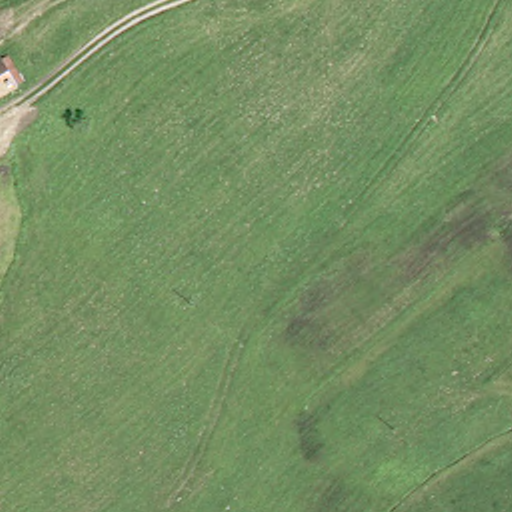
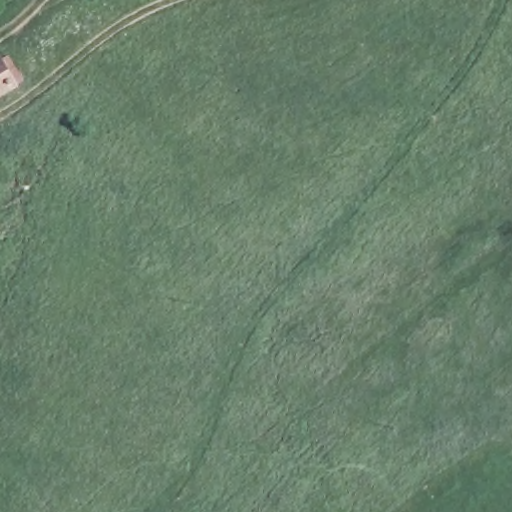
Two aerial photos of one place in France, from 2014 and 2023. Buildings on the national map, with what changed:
unchanged [(13,84),(0,91),(0,60),(13,84)]

